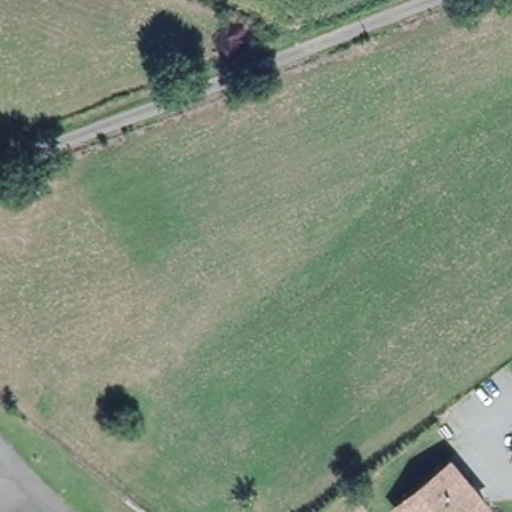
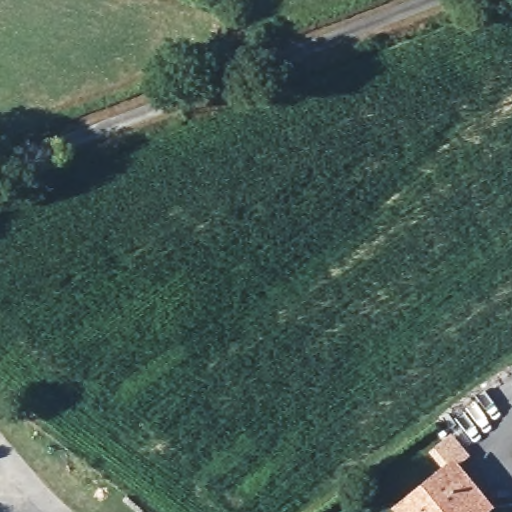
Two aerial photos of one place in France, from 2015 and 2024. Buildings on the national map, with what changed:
unchanged [(488,512),(399,512),(392,504),(458,454),(497,505),(488,512)]

